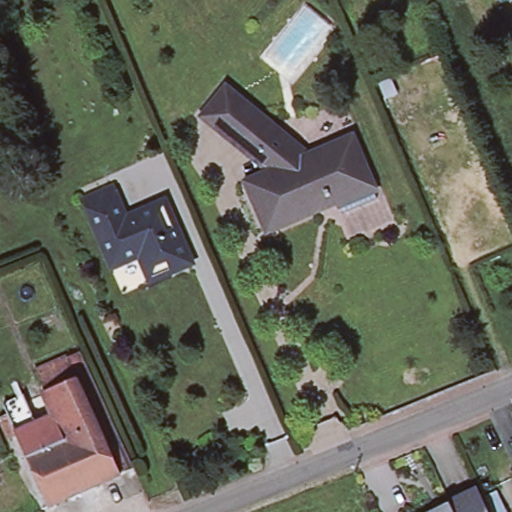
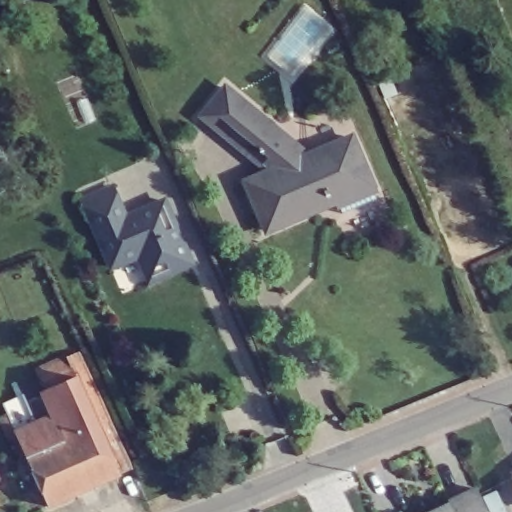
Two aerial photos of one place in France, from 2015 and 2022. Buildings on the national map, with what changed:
unchanged [(266,230),(245,181),(269,170),(201,115),(224,86),(273,126),(309,212),(266,230)]
unchanged [(308,155),(331,144),(356,205),(341,212),(336,200),(309,212),(273,126),(308,155)]
unchanged [(349,136),(376,197),(356,205),(331,144),(349,136)]
unchanged [(146,271),(139,255),(113,267),(83,199),(112,187),(126,220),(142,213),(141,211),(164,200),(174,224),(191,263),(167,273),(150,281),(146,271)]
unchanged [(73,356),(82,376),(71,381),(39,395),(30,375),(73,356)]
unchanged [(126,473),(114,479),(71,381),(82,376),(126,473)]
unchanged [(48,421),(36,396),(39,395),(71,381),(114,479),(75,496),(43,424),(48,421)]
unchanged [(30,429),(10,438),(11,440),(3,443),(0,437),(0,407),(18,399),(30,429)]
unchanged [(10,438),(30,429),(43,424),(75,496),(43,510),(11,440),(10,438)]
unchanged [(512,475),(512,479),(511,476),(512,475)]
unchanged [(446,503),(476,489),(482,501),(496,494),(503,512),(441,512),(449,508),(446,503)]
unchanged [(437,512),(428,512),(435,508),(437,512)]

